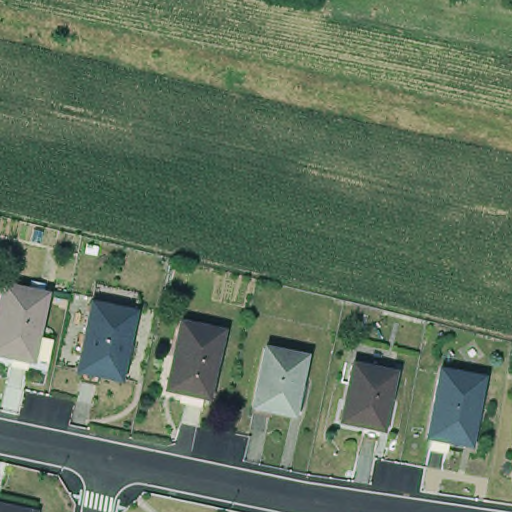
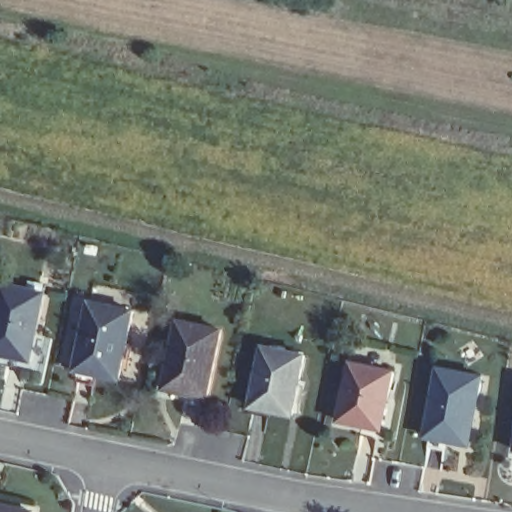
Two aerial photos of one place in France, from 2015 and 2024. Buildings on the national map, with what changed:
unchanged [(0,359),(0,302),(3,287),(28,293),(30,285),(45,288),(43,297),(46,298),(31,366),(0,359)]
unchanged [(73,379),(75,370),(72,369),(87,300),(129,309),(115,378),(93,374),(90,383),(73,379)]
unchanged [(181,405),(183,395),(161,391),(175,323),(217,332),(205,400),(202,399),(200,409),(181,405)]
unchanged [(243,409),(255,346),(296,354),(285,416),(243,409)]
unchanged [(331,420),(344,362),(385,372),(372,428),(331,420)]
unchanged [(423,437),(436,369),(480,377),(466,445),(423,437)]
unchanged [(29,512),(0,512),(0,504),(29,510),(29,512)]

